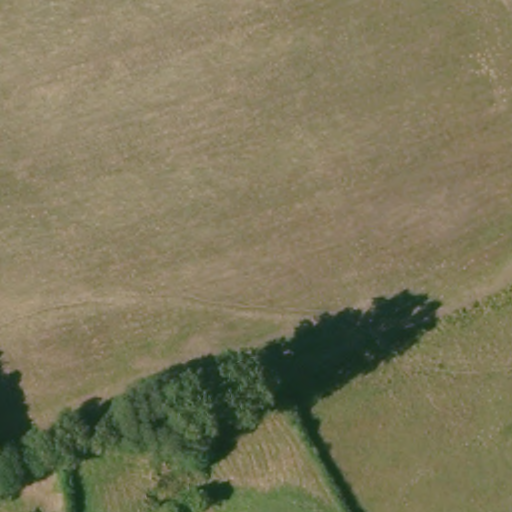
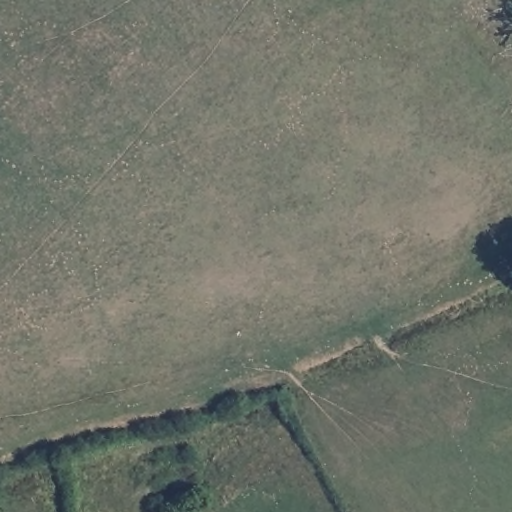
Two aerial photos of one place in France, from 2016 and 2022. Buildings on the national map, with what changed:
[]

